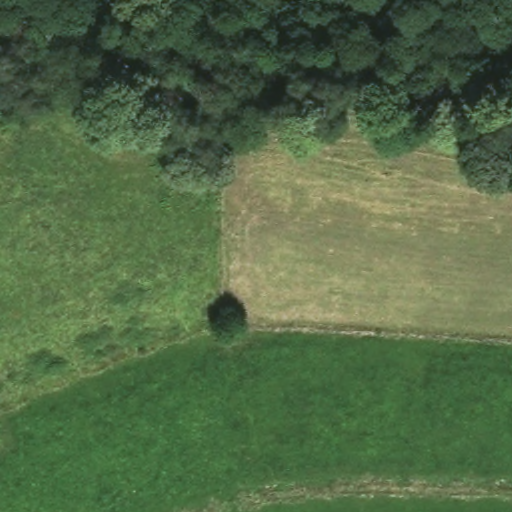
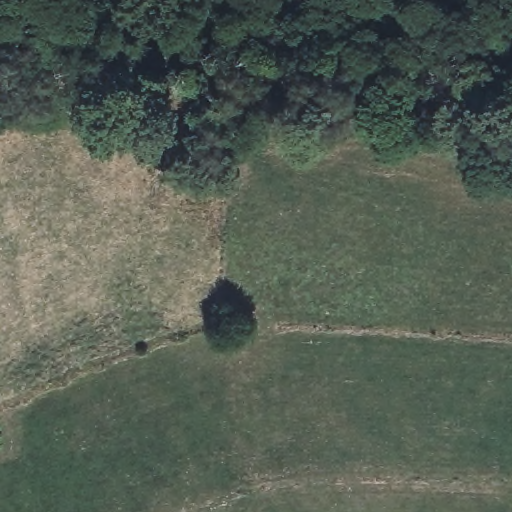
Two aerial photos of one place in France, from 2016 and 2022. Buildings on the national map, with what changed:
unchanged [(71,99),(37,93),(41,79),(73,86),(71,99)]

